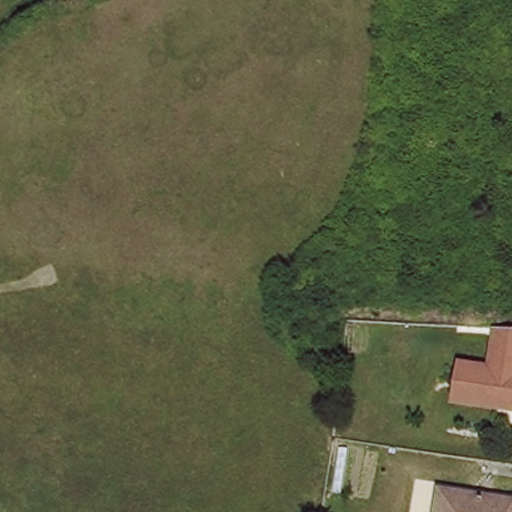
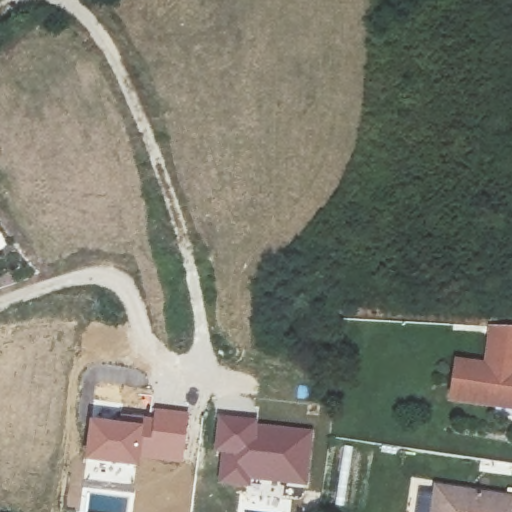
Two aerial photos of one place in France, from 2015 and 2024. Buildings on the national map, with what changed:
unchanged [(502,408),(501,413),(457,407),(462,369),(492,373),(497,332),(510,333),(512,333),(512,409),(502,408)]
new [(142,415),(151,416),(152,408),(188,412),(182,464),(140,459),(142,415)]
new [(89,418),(135,420),(135,414),(142,415),(140,459),(139,468),(84,461),(89,418)]
new [(258,421),(257,425),(315,433),(307,487),(251,482),(249,488),(217,482),(222,454),(213,454),(219,418),(258,421)]
unchanged [(441,493),(512,504),(512,512),(438,512),(441,493)]

